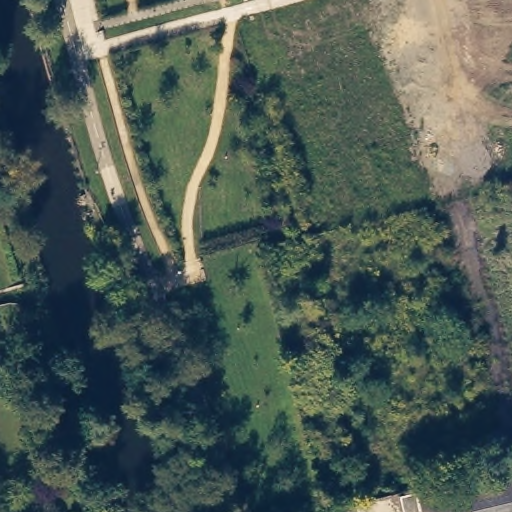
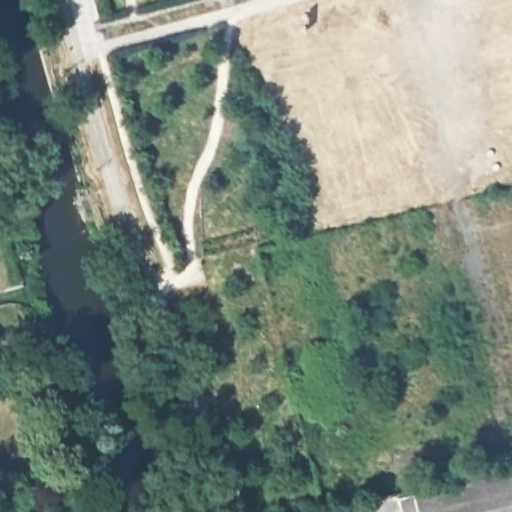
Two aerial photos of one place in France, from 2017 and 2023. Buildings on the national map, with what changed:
unchanged [(404,512),(400,491),(512,465),(512,512),(404,512)]

